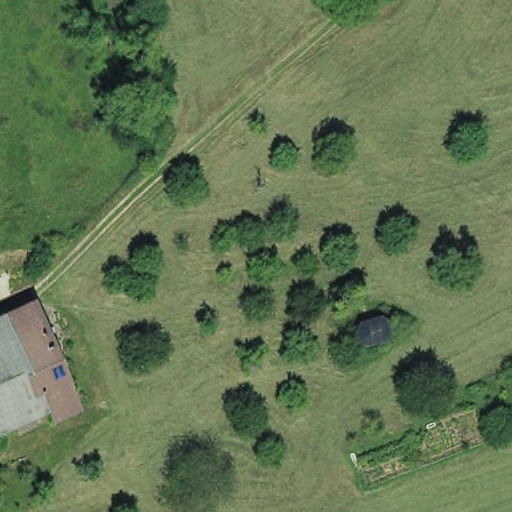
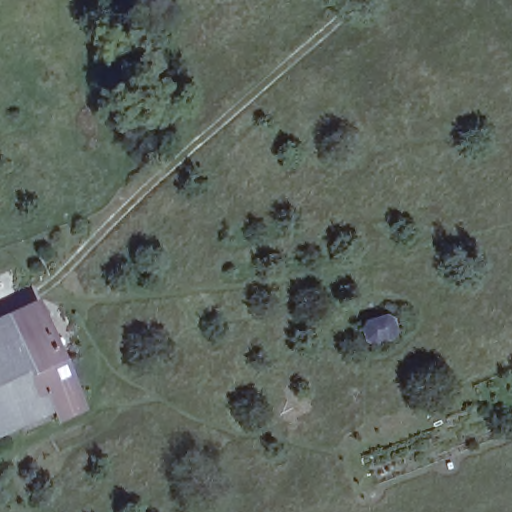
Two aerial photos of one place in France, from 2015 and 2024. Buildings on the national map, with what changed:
unchanged [(56,341),(67,343),(73,356),(66,364),(83,395),(55,407),(49,401),(0,429),(0,323),(38,305),(56,341)]
unchanged [(399,333),(366,345),(355,319),(389,306),(399,333)]

